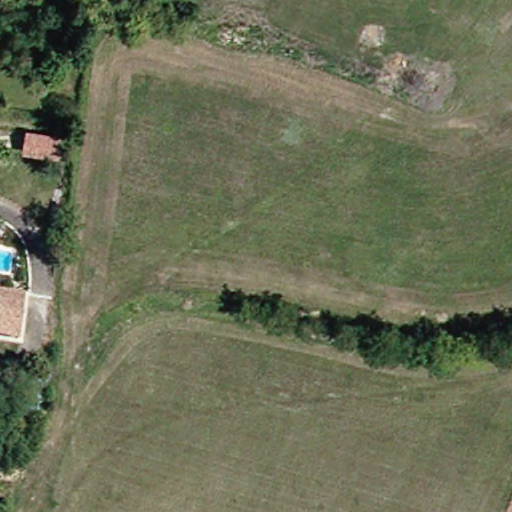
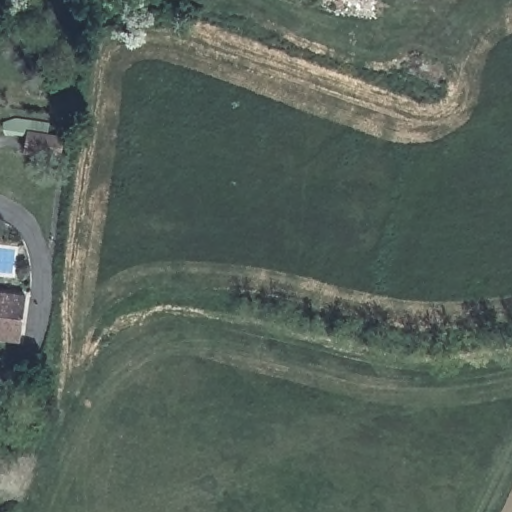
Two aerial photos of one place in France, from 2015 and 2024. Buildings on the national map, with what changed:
unchanged [(24,340),(2,337),(3,332),(0,332),(0,291),(30,295),(24,340)]

